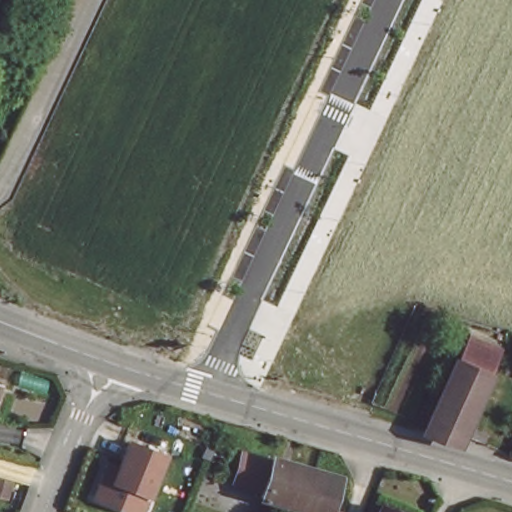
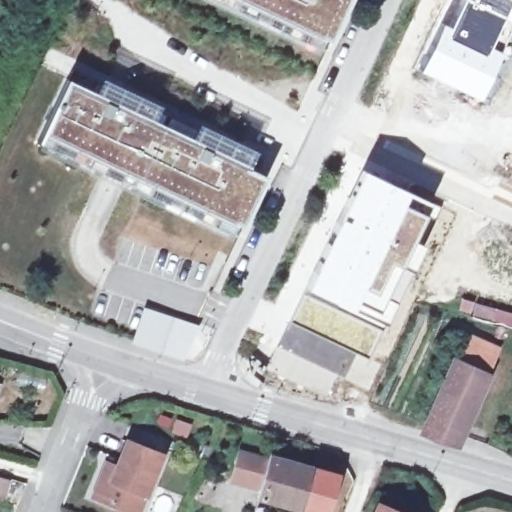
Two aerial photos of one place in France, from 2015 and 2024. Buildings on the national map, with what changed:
new [(322,58),(198,0),(349,0),(322,58)]
new [(448,0),(458,0),(444,33),(482,51),(487,42),(489,43),(490,41),(501,46),(477,99),(415,70),(448,0)]
new [(512,22),(512,24),(501,46),(490,41),(489,43),(487,42),(482,51),(444,33),(458,0),(466,0),(512,22)]
new [(466,0),(512,0),(512,22),(466,0)]
new [(65,79),(266,174),(241,229),(239,228),(234,240),(34,149),(65,79)]
new [(361,167),(409,189),(377,258),(350,311),(304,290),(361,167)]
new [(377,258),(409,189),(431,200),(412,237),(424,244),(385,325),(373,320),(350,311),(377,258)]
new [(304,290),(350,311),(373,320),(371,324),(383,329),(368,357),(290,321),(304,290)]
new [(512,312),(512,328),(457,312),(461,297),(512,312)]
new [(141,309),(198,325),(184,360),(131,343),(141,309)]
unchanged [(497,352),(456,443),(425,430),(467,339),(497,352)]
unchanged [(147,496),(136,492),(129,512),(127,512),(94,499),(102,478),(112,482),(127,443),(161,456),(147,496)]
unchanged [(347,480),(337,512),(307,512),(268,501),(270,493),(244,485),(241,484),(250,455),(255,457),(279,464),(280,462),(321,473),(347,480)]
unchanged [(376,512),(379,504),(395,512),(376,512)]

